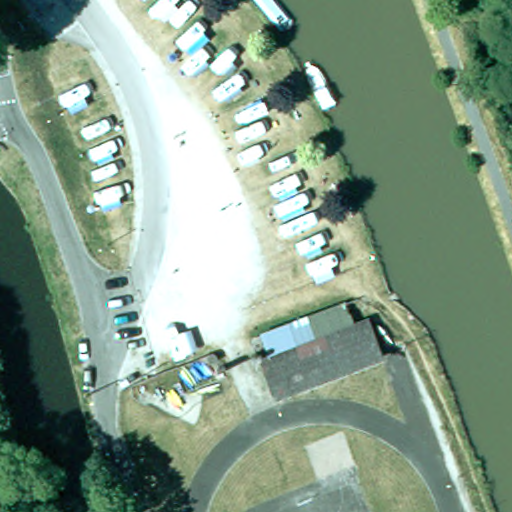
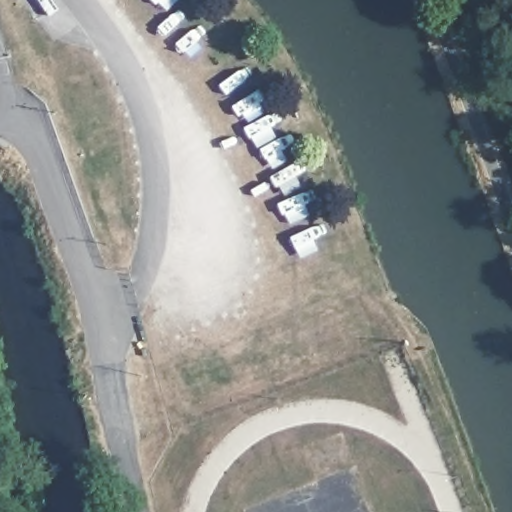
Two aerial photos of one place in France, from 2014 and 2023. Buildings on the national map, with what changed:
demolished [(382,354),(278,396),(261,358),(369,318),(382,354)]

